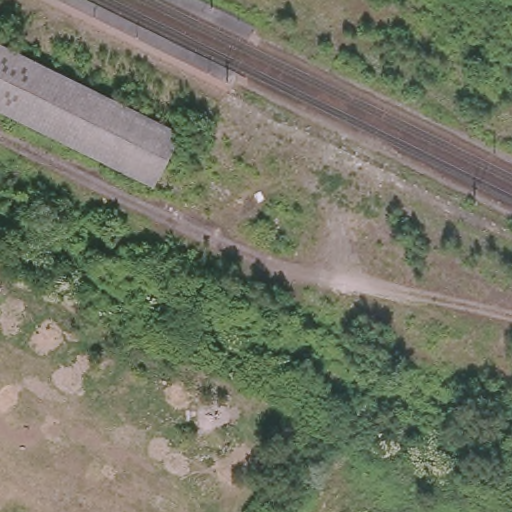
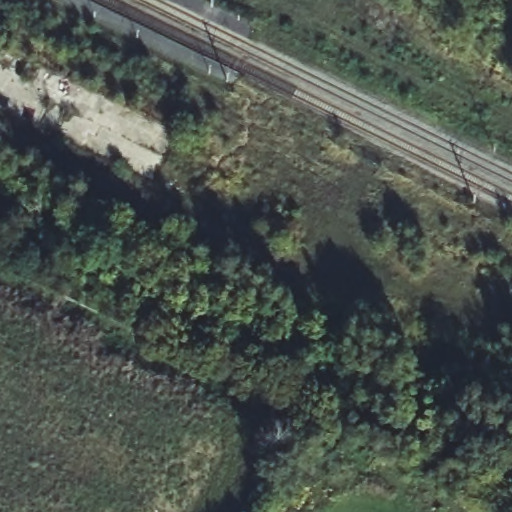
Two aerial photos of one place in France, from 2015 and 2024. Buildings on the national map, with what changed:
demolished [(180,132),(152,186),(0,112),(0,44),(180,132)]

